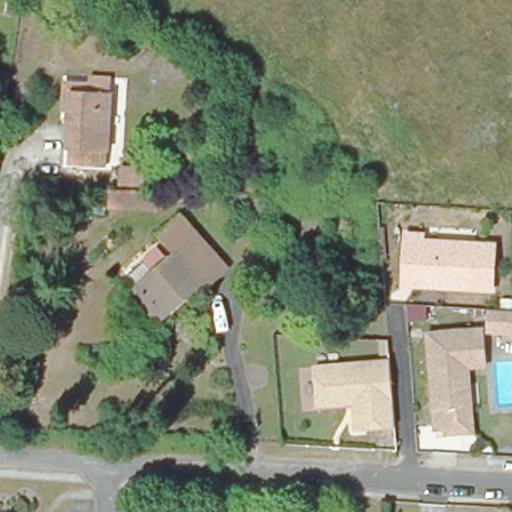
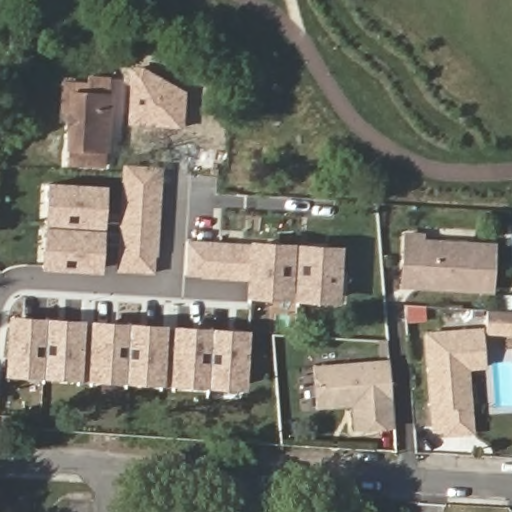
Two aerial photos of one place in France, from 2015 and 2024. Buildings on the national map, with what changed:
new [(131,65),(142,66),(185,90),(183,127),(127,124),(131,65)]
unchanged [(67,161),(70,106),(62,105),(63,80),(87,82),(87,76),(109,78),(104,163),(67,161)]
demolished [(118,162),(150,164),(150,186),(117,184),(118,162)]
new [(163,166),(159,274),(121,272),(123,164),(163,166)]
new [(112,188),(107,268),(47,266),(52,185),(112,188)]
demolished [(155,191),(154,208),(97,205),(99,188),(155,191)]
demolished [(172,250),(155,232),(174,213),(223,262),(204,282),(199,277),(160,315),(155,310),(133,288),(172,250)]
unchanged [(490,291),(402,286),(404,232),(422,233),(422,241),(492,244),(490,291)]
new [(351,247),(348,304),(247,300),(249,281),(186,278),(187,242),(351,247)]
unchanged [(492,330),(492,311),(512,312),(512,331),(492,330)]
new [(9,315),(251,329),(247,389),(6,375),(9,315)]
unchanged [(487,371),(471,373),(477,425),(435,429),(425,333),(482,328),(487,371)]
unchanged [(391,425),(353,427),(352,403),(315,406),(311,362),(386,355),(391,425)]

